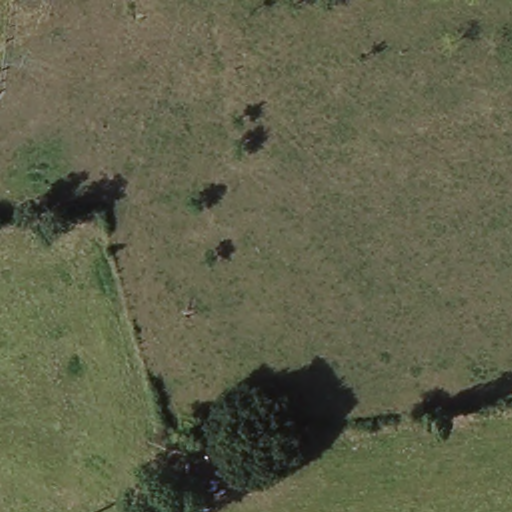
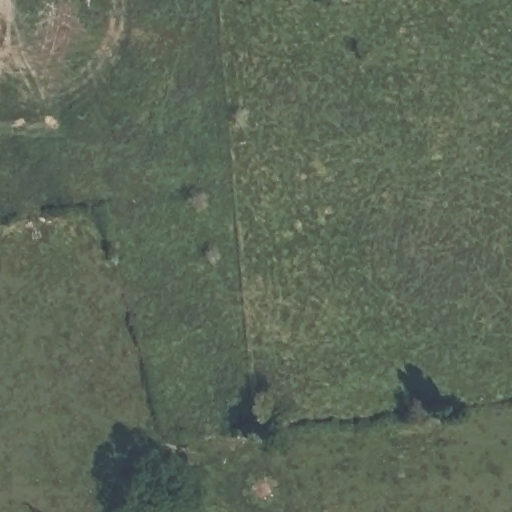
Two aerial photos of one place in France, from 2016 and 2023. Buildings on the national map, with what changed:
[]

